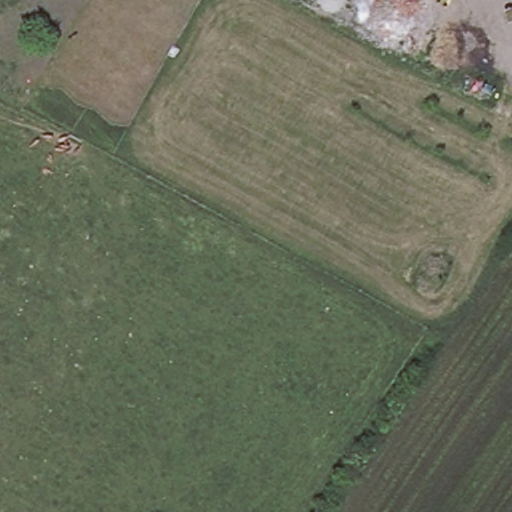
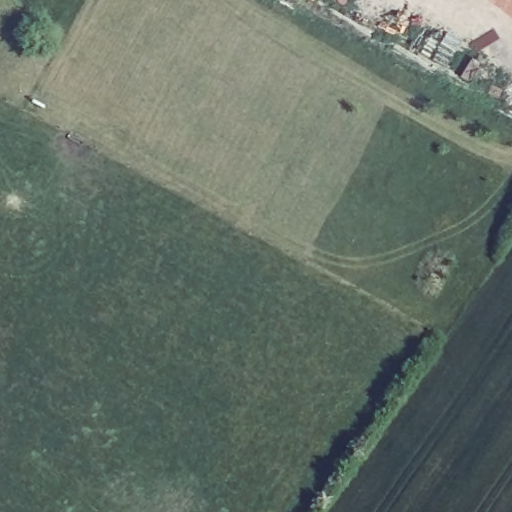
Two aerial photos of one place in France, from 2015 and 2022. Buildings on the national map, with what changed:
[]

